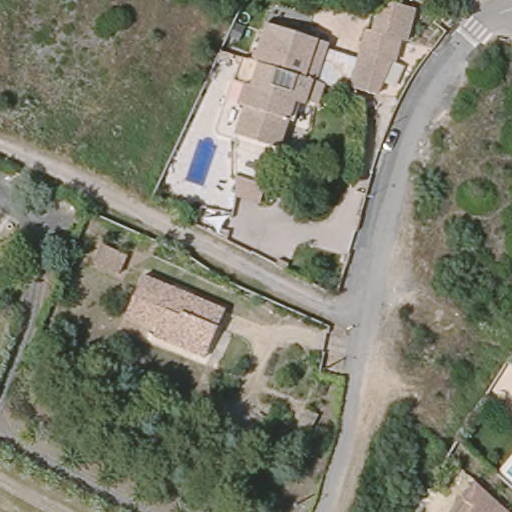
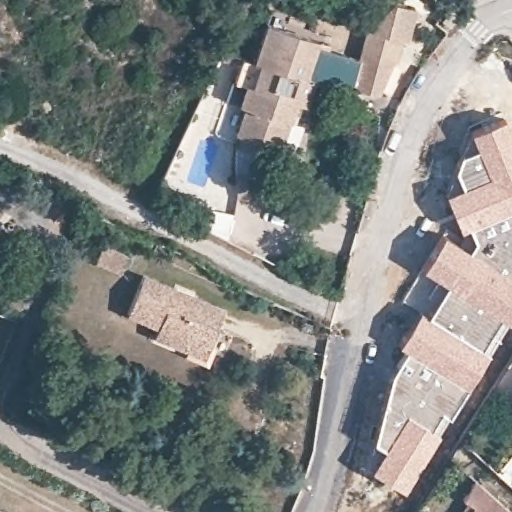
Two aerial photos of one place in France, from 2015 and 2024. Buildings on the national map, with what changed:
unchanged [(294,103),(278,148),(235,133),(244,105),(240,103),(245,86),(235,83),(244,57),(255,61),(268,25),(321,43),(330,46),(316,83),(312,82),(304,106),(294,103)]
unchanged [(391,61),(388,60),(372,94),(347,86),(364,29),(398,38),(391,61)]
new [(454,170),(460,154),(475,147),(469,132),(508,118),(512,127),(512,209),(467,228),(460,231),(445,193),(460,186),(454,170)]
new [(444,233),(467,248),(472,241),(467,228),(512,209),(512,316),(507,324),(500,319),(483,348),(426,315),(444,285),(420,270),(444,233)]
unchanged [(94,255),(103,237),(127,248),(119,266),(94,255)]
unchanged [(193,345),(160,329),(164,320),(132,306),(148,267),(183,283),(195,289),(231,305),(217,340),(211,353),(193,345)]
new [(419,310),(426,315),(483,348),(490,352),(467,388),(404,349),(398,346),(419,310)]
new [(383,449),(371,442),(390,376),(404,349),(467,388),(447,418),(441,414),(432,428),(440,432),(402,492),(370,469),(383,449)]
unchanged [(471,504),(468,502),(481,484),(502,504),(512,511),(512,512),(466,512),(471,504)]

